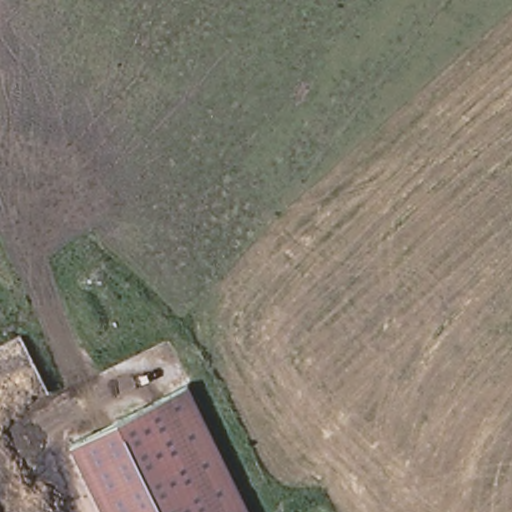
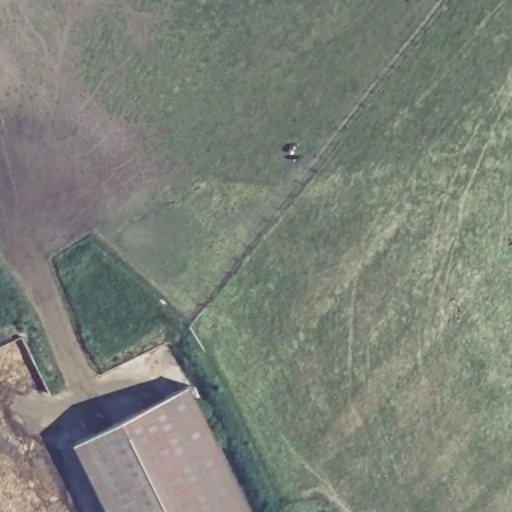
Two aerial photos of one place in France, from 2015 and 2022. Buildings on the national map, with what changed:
unchanged [(253,512),(226,512),(169,395),(191,385),(253,512)]
unchanged [(169,395),(226,512),(111,512),(77,441),(169,395)]

